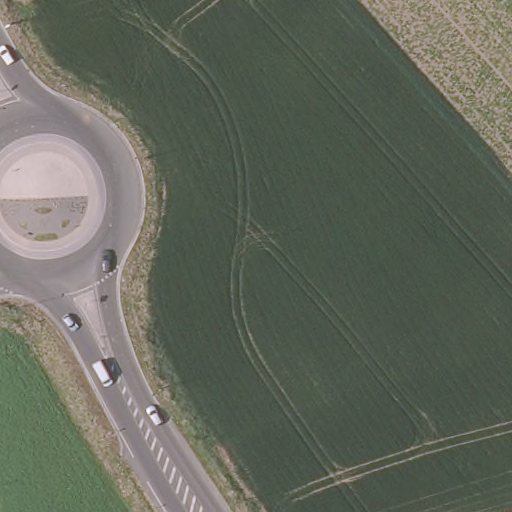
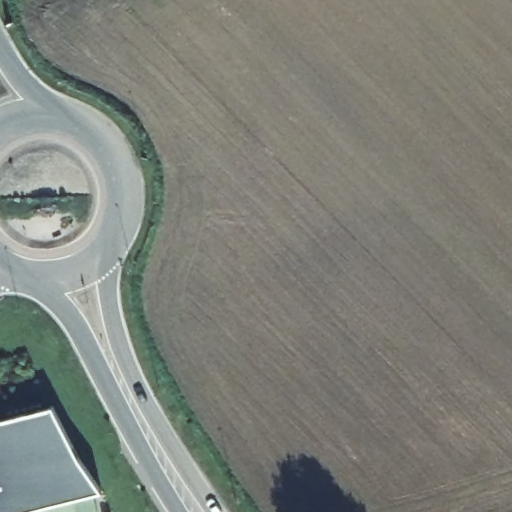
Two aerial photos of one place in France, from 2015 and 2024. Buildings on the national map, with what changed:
new [(105,491),(22,512),(0,512),(0,419),(55,406),(80,467),(105,491)]
new [(98,493),(104,512),(35,512),(35,510),(98,493)]

